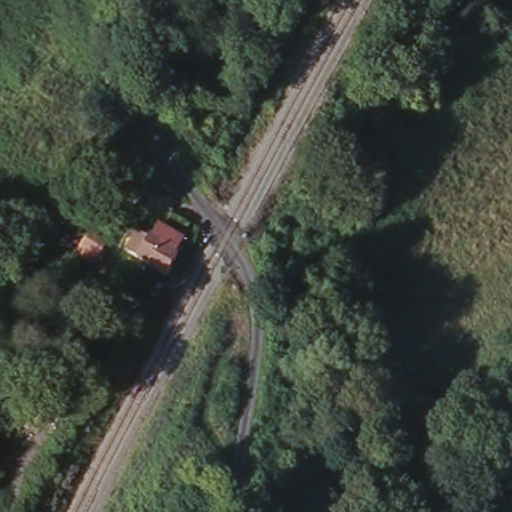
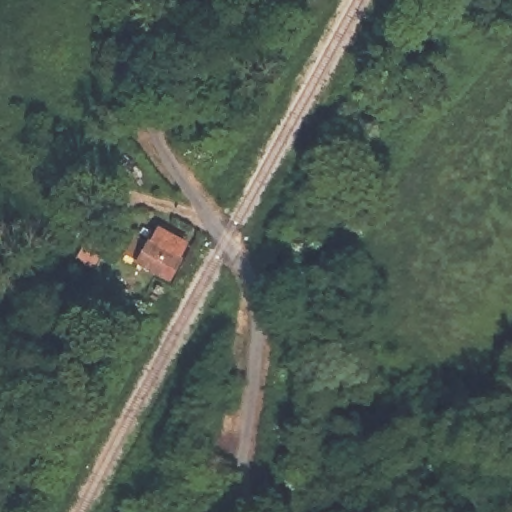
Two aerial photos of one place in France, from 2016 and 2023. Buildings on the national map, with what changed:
unchanged [(113,211),(98,235),(82,225),(97,202),(113,211)]
unchanged [(187,240),(178,255),(183,258),(174,275),(157,265),(142,256),(135,251),(144,236),(155,243),(164,226),(187,240)]

